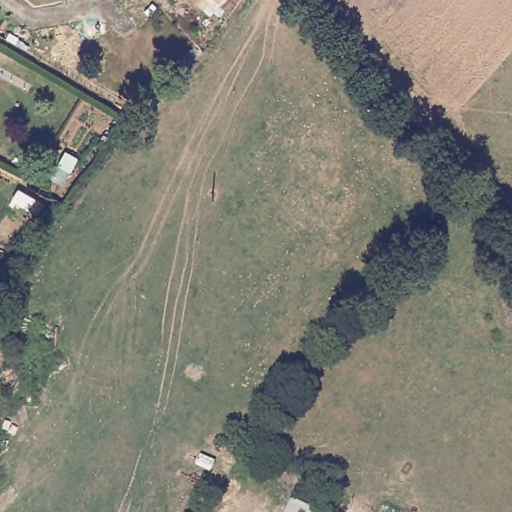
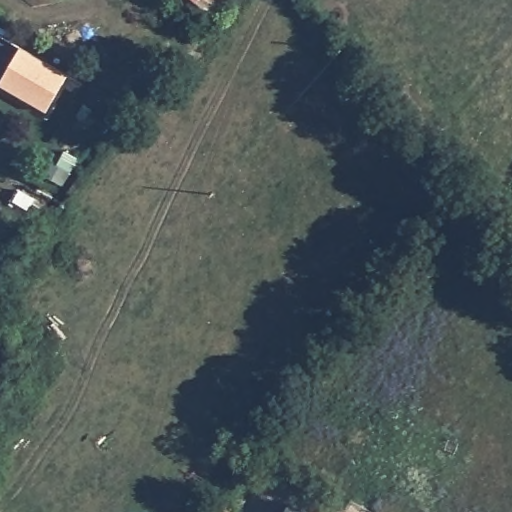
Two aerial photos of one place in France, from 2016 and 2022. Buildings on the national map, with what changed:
unchanged [(195,3),(191,0),(197,0),(195,3)]
new [(0,86),(0,81),(20,47),(67,75),(46,112),(0,86)]
unchanged [(272,512),(277,498),(318,512),(272,512)]

